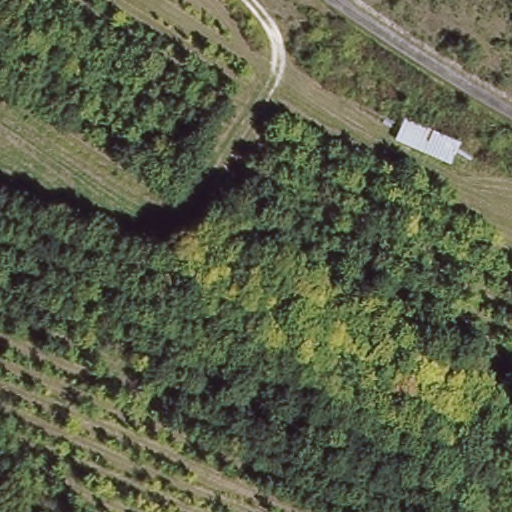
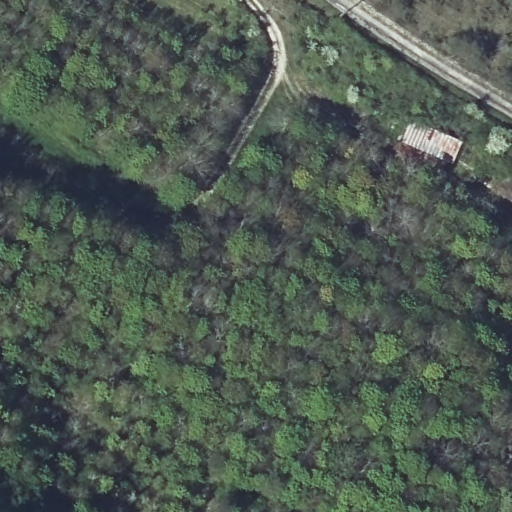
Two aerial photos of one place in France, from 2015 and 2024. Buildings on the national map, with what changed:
unchanged [(450,168),(399,141),(405,126),(458,151),(450,168)]

